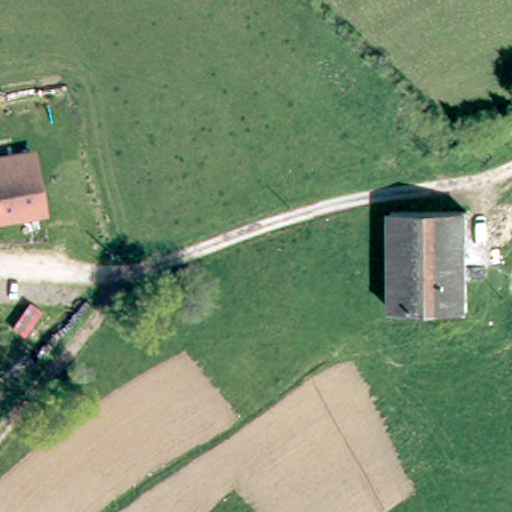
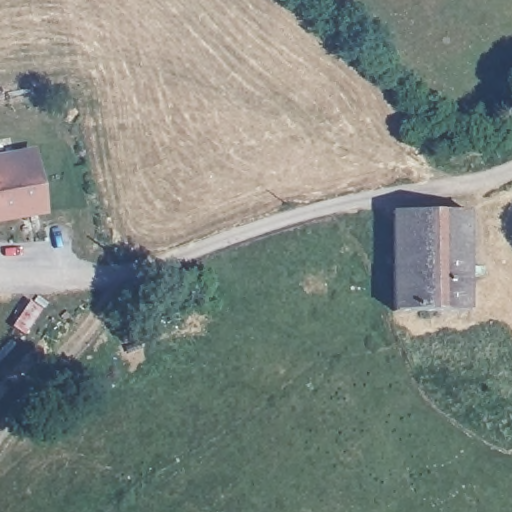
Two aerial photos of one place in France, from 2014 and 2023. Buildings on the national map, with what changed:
unchanged [(35,209),(0,212),(0,154),(30,151),(35,209)]
unchanged [(461,212),(460,309),(386,308),(387,210),(461,212)]

